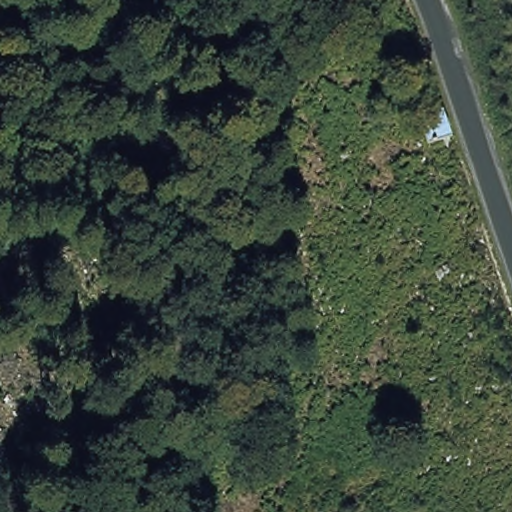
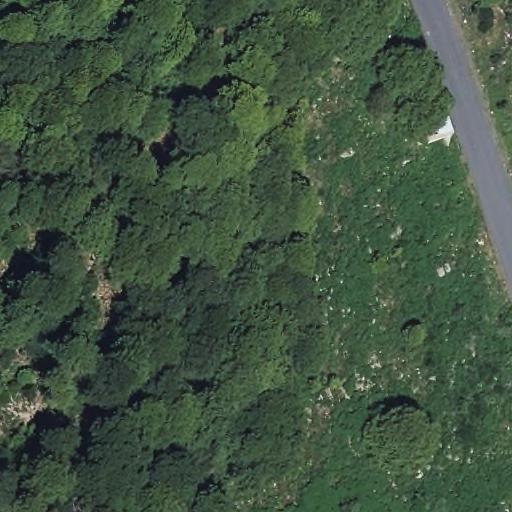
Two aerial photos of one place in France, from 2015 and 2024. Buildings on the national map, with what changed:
unchanged [(453,139),(427,144),(419,110),(444,105),(453,139)]

